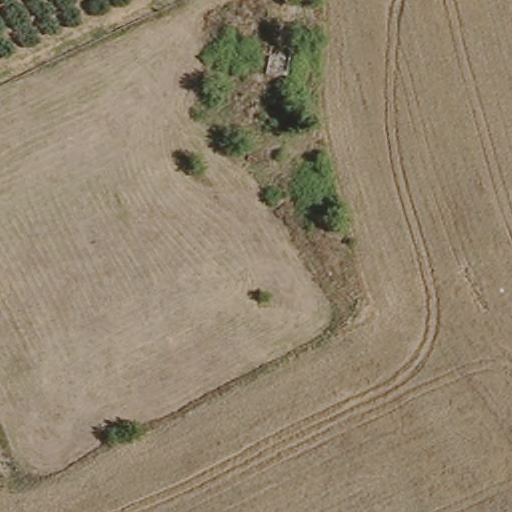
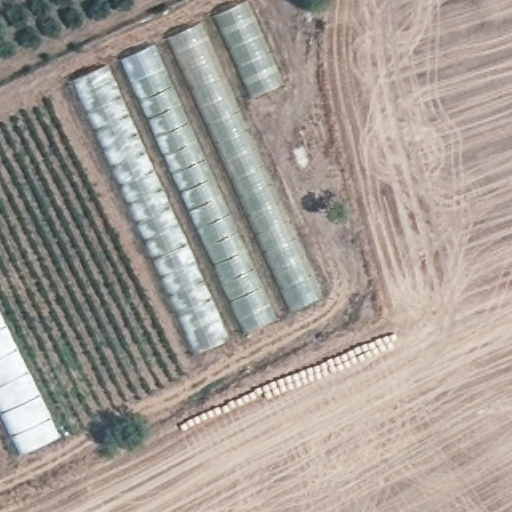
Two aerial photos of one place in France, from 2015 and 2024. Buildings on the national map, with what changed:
new [(285,84),(236,108),(321,297),(196,354),(68,81),(246,2),(285,84)]
new [(59,436),(20,454),(0,415),(0,314),(59,436)]

